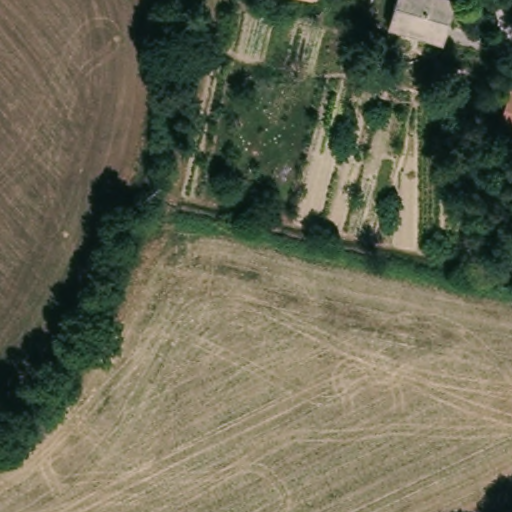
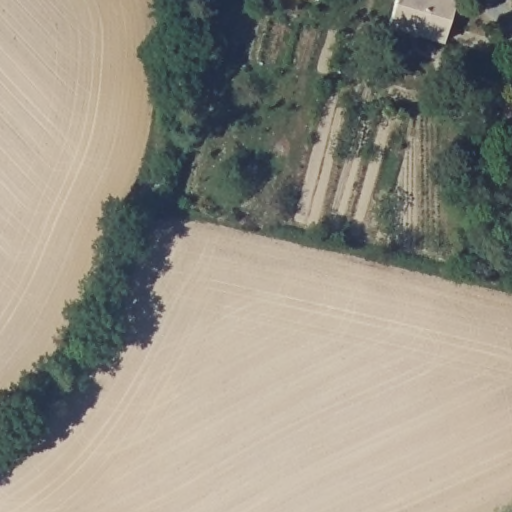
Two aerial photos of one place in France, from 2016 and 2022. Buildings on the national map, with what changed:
unchanged [(313,2),(305,0),(314,0),(313,2)]
unchanged [(397,0),(454,0),(456,1),(443,44),(388,26),(397,0)]
unchanged [(508,91),(512,92),(512,133),(500,130),(508,91)]

